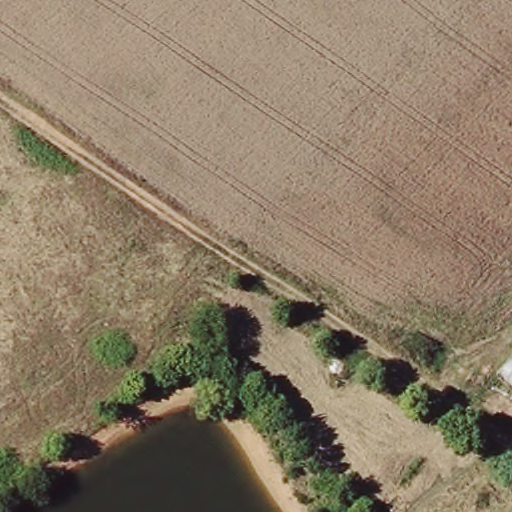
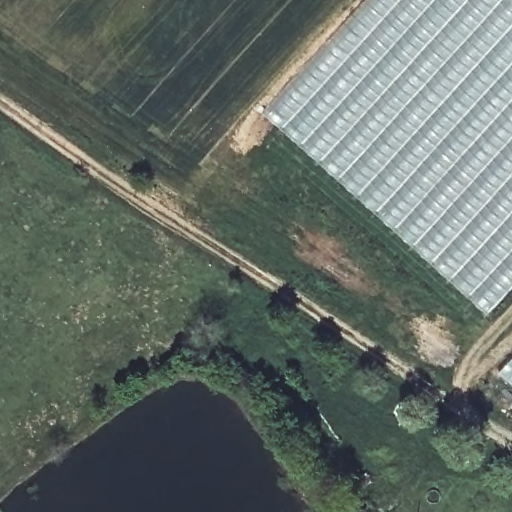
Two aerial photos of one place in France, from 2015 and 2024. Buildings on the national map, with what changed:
new [(512,0),(512,284),(486,314),(417,249),(263,113),(363,0),(512,0)]
unchanged [(501,376),(512,363),(512,386),(501,376)]

